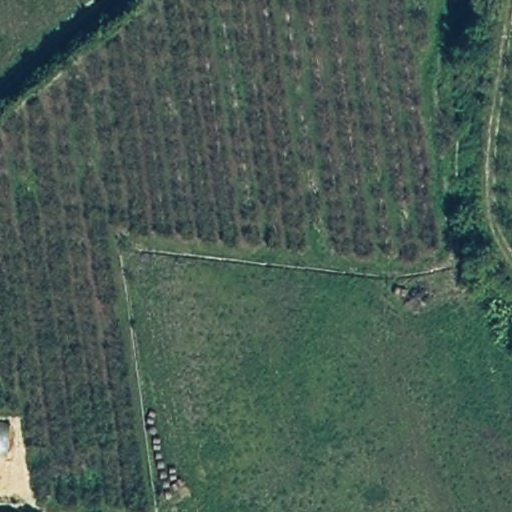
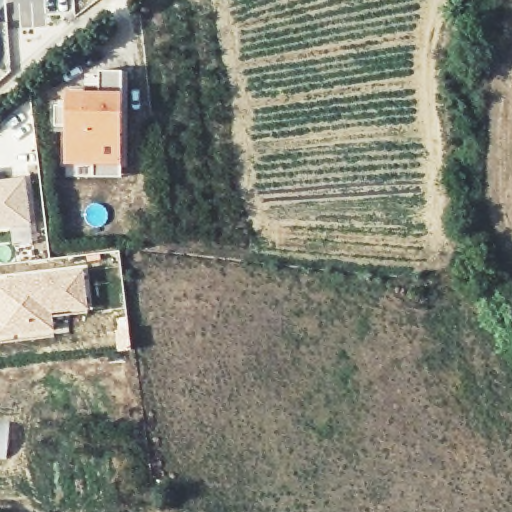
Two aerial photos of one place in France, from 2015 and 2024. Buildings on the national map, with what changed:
new [(97,177),(96,162),(68,162),(67,127),(57,127),(56,107),(75,106),(75,95),(100,95),(100,71),(122,70),(124,161),(125,177),(97,177)]
new [(14,238),(10,218),(0,220),(0,174),(5,173),(24,171),(30,215),(33,235),(14,238)]
new [(0,317),(0,273),(85,261),(90,303),(55,308),(57,328),(2,335),(0,317)]
unchanged [(7,423),(6,454),(0,453),(0,423),(7,423)]

